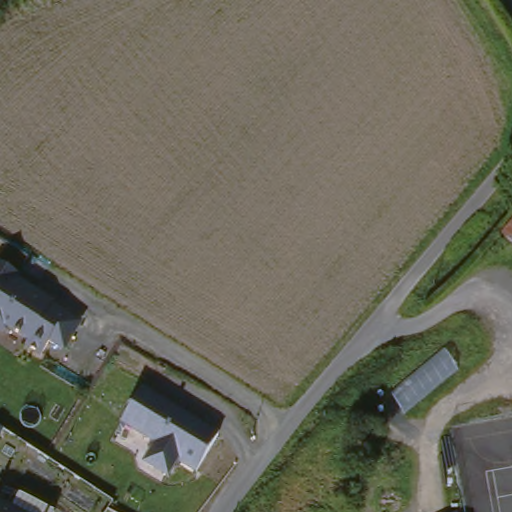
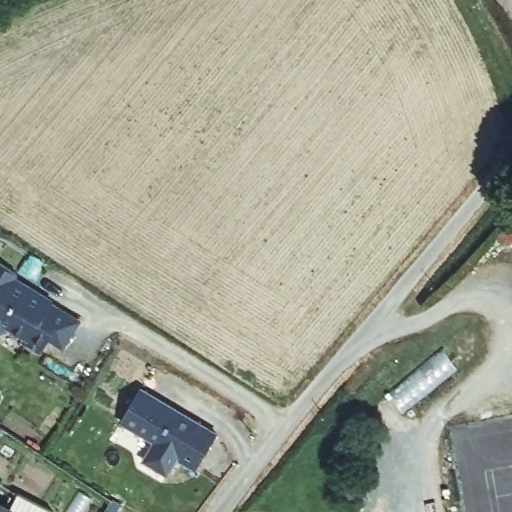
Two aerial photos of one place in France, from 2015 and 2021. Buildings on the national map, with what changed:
unchanged [(512,211),(512,243),(498,231),(512,211)]
unchanged [(66,349),(52,341),(44,354),(28,345),(31,339),(13,327),(3,332),(0,330),(0,264),(1,262),(20,275),(19,279),(55,303),(56,307),(83,322),(66,349)]
unchanged [(221,435),(199,469),(179,457),(169,473),(148,459),(159,441),(125,418),(145,387),(221,435)]
unchanged [(26,505),(29,499),(50,512),(0,512),(0,506),(6,495),(26,505)]

